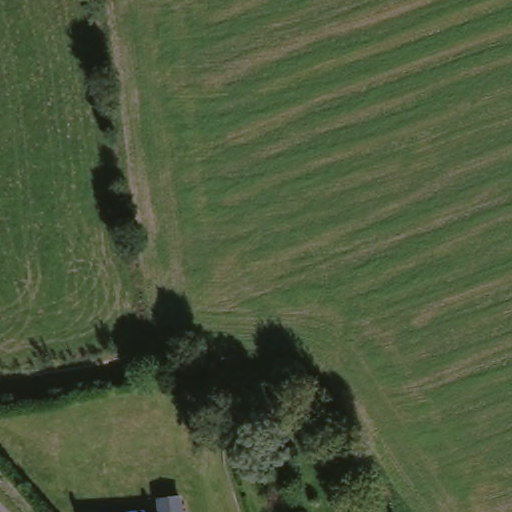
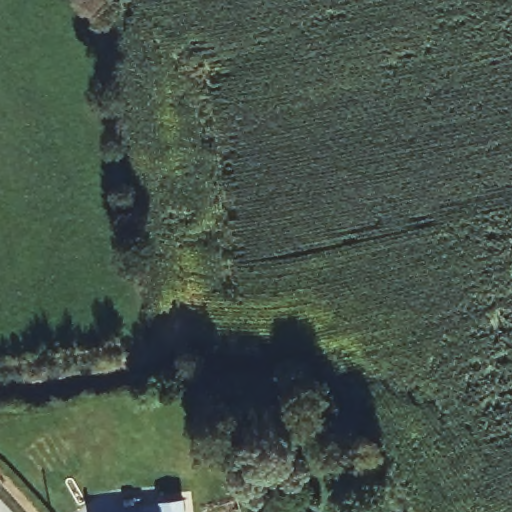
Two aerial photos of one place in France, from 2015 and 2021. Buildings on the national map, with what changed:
unchanged [(159,507),(180,505),(181,512),(159,512),(159,507)]

